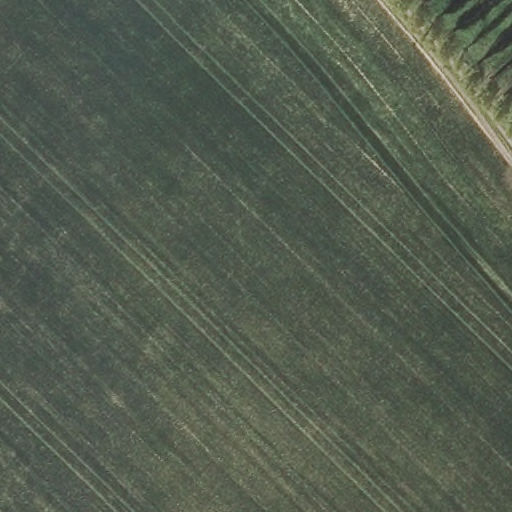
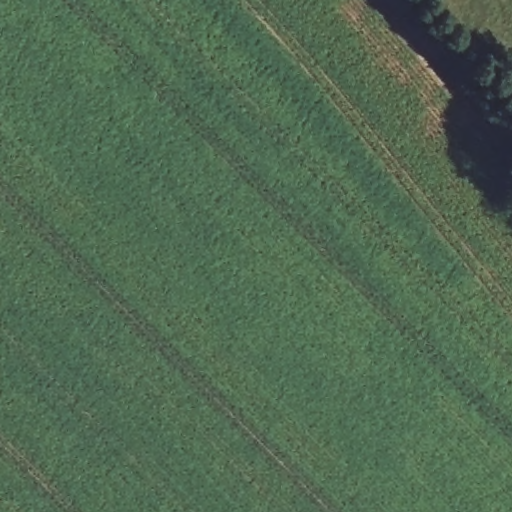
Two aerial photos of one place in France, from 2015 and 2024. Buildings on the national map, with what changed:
[]

